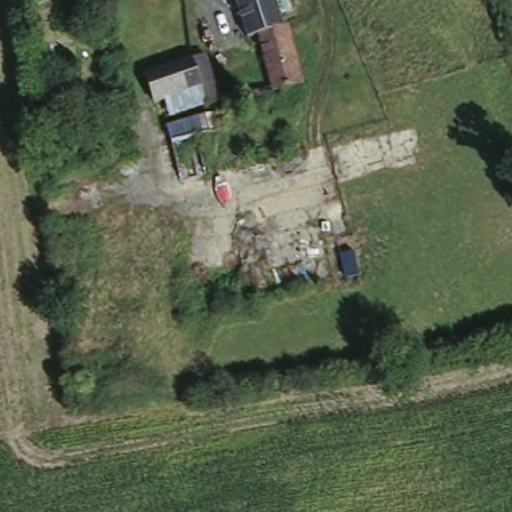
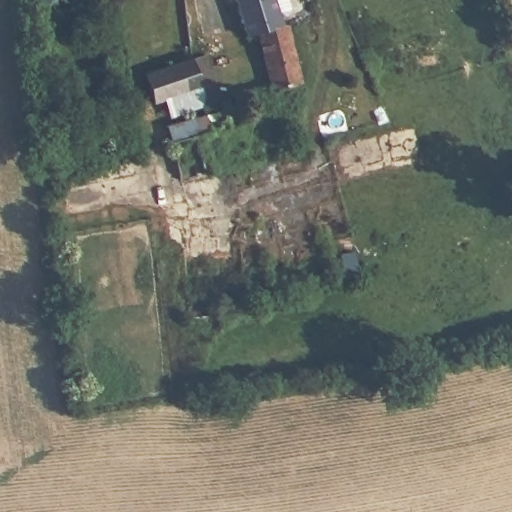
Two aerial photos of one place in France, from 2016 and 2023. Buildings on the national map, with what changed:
unchanged [(286,20),(303,76),(274,81),(263,41),(258,25),(246,28),(237,0),(277,0),(284,20),(286,20)]
unchanged [(146,63),(206,47),(211,60),(217,92),(203,96),(157,105),(153,92),(146,63)]

